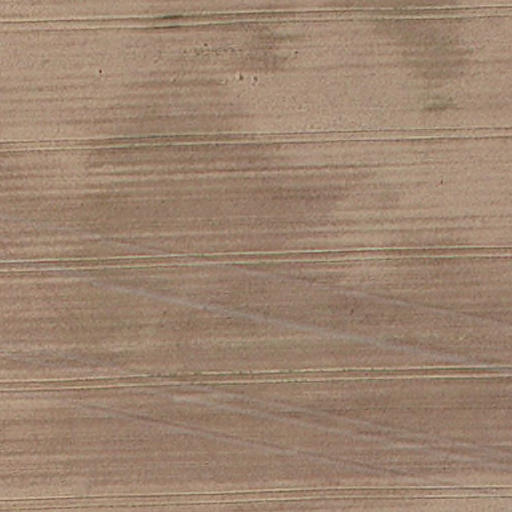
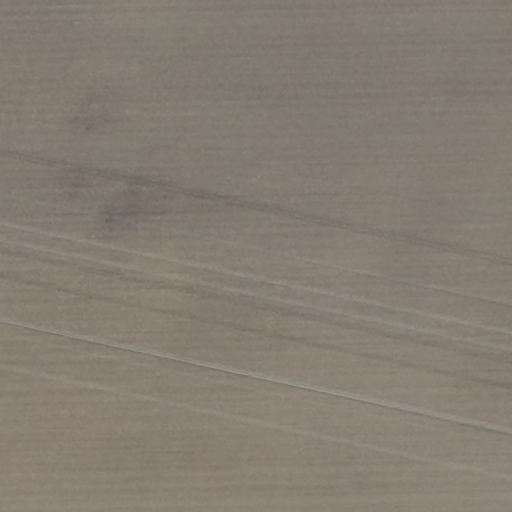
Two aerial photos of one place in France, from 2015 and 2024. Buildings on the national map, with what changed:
[]

